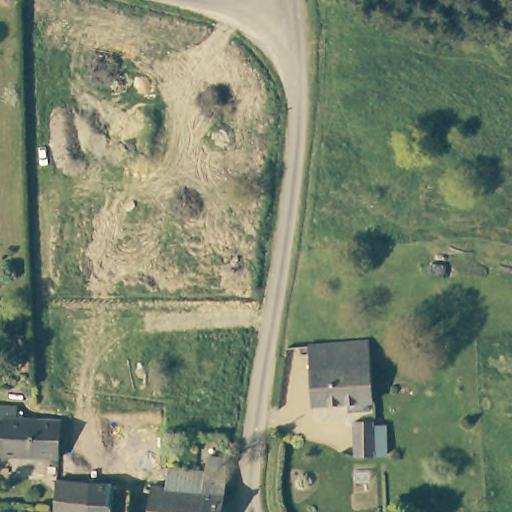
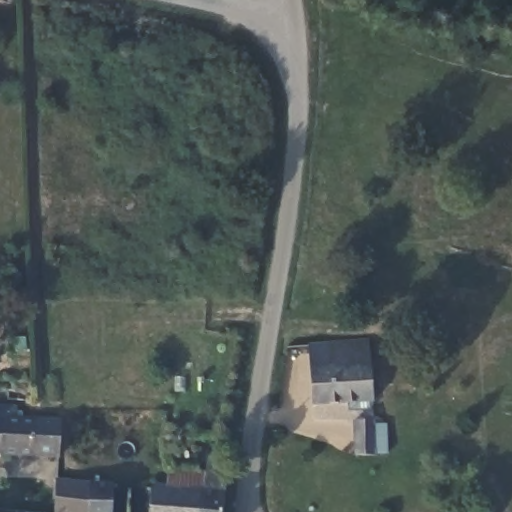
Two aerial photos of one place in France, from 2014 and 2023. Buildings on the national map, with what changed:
unchanged [(373,397),(312,403),(305,346),(367,340),(373,397)]
unchanged [(34,455),(0,452),(0,402),(14,403),(13,416),(38,417),(58,418),(57,457),(34,455)]
unchanged [(382,455),(371,455),(371,457),(352,456),(351,421),(371,422),(371,427),(383,427),(382,455)]
unchanged [(172,488),(170,468),(195,470),(206,471),(200,512),(135,512),(138,486),(172,488)]
unchanged [(227,484),(222,512),(200,512),(206,471),(226,472),(227,484)]
unchanged [(86,484),(113,486),(110,512),(64,512),(68,483),(86,484)]

